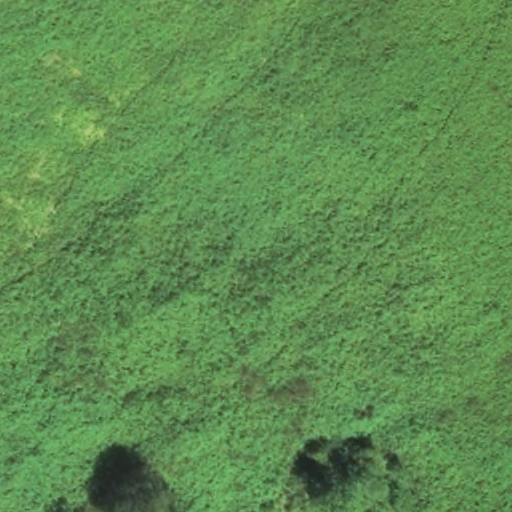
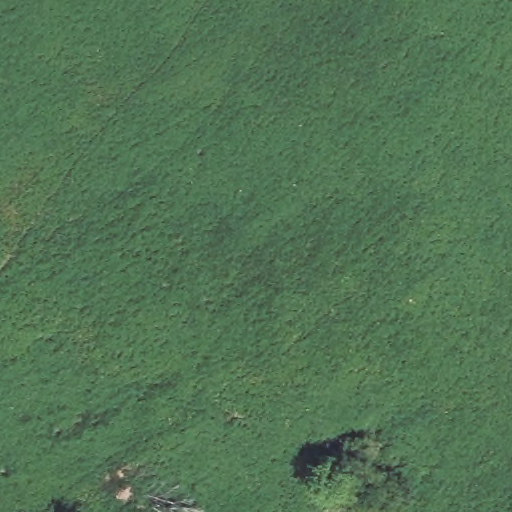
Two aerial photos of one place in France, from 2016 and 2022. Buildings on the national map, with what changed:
[]

